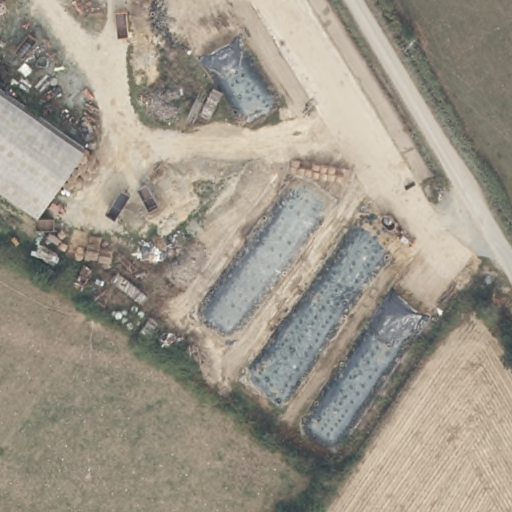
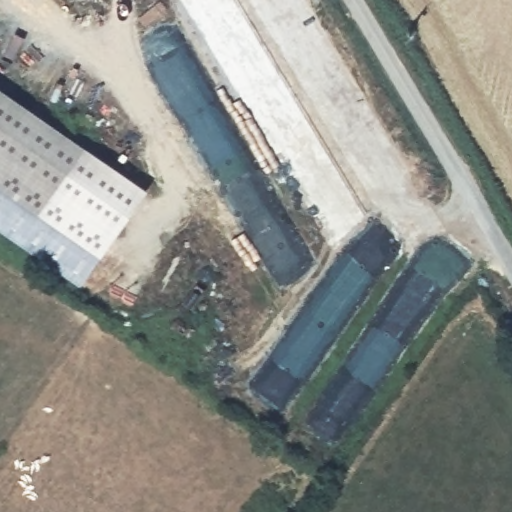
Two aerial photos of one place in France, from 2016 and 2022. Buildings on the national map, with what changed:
unchanged [(39,214),(0,186),(0,88),(85,147),(39,214)]
new [(85,147),(149,190),(82,287),(0,230),(0,186),(39,214),(85,147)]

